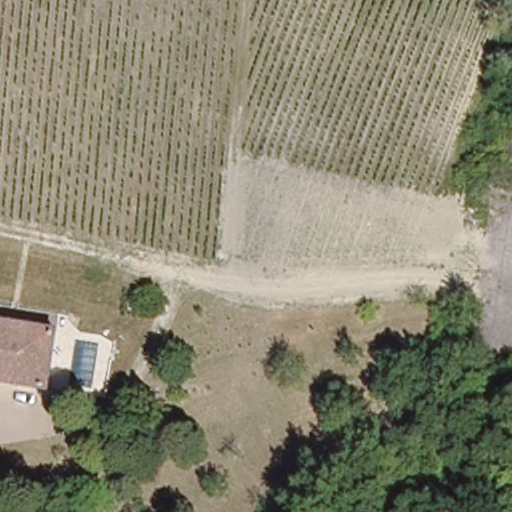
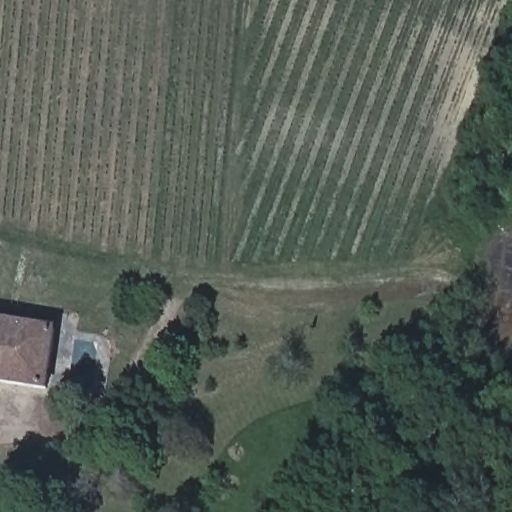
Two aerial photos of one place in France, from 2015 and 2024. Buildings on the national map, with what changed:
unchanged [(49,388),(0,381),(0,323),(55,332),(49,388)]

